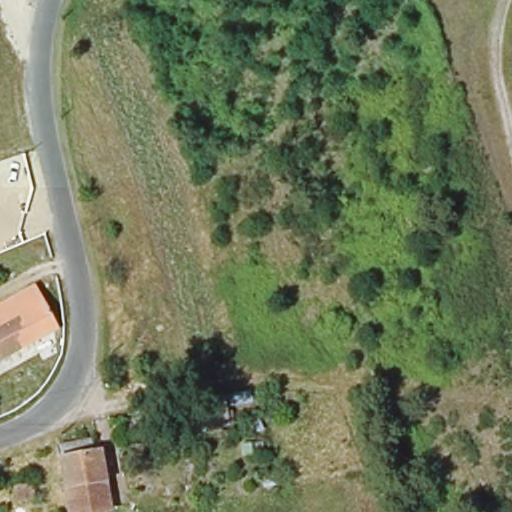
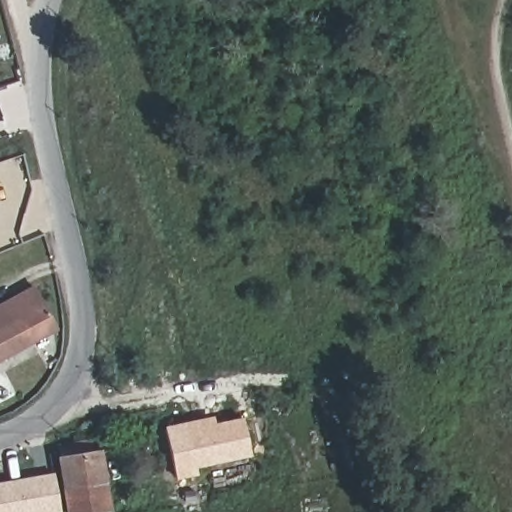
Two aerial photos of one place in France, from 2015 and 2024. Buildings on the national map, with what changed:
unchanged [(60,330),(32,344),(17,316),(0,326),(0,302),(35,284),(60,330)]
unchanged [(32,344),(0,361),(0,326),(17,316),(32,344)]
new [(197,467),(199,474),(177,478),(165,426),(213,416),(214,424),(243,417),(252,455),(197,467)]
unchanged [(67,511),(57,455),(94,450),(104,504),(67,511)]
new [(58,512),(0,512),(0,483),(51,473),(58,512)]

